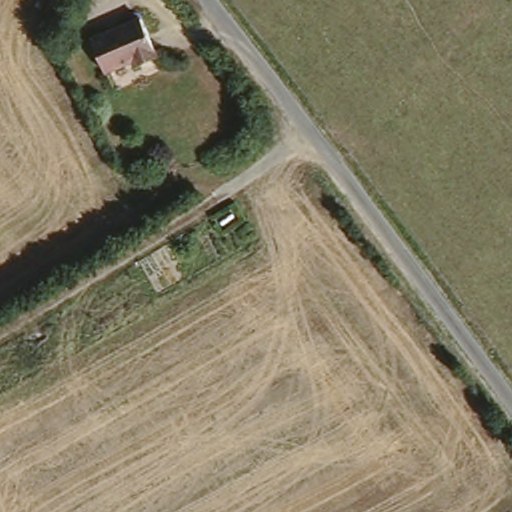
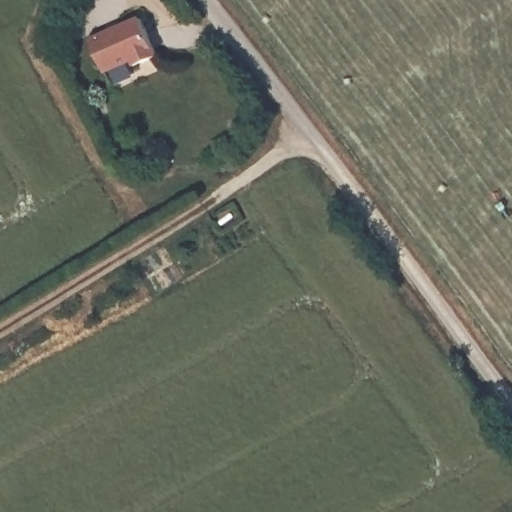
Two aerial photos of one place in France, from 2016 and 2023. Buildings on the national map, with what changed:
unchanged [(137,14),(153,52),(132,61),(128,55),(99,68),(85,35),(137,14)]

